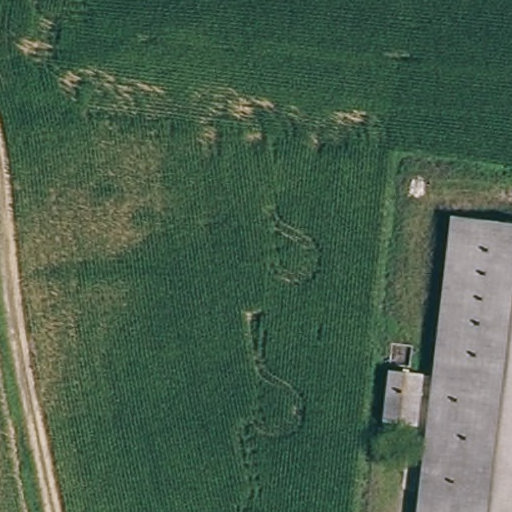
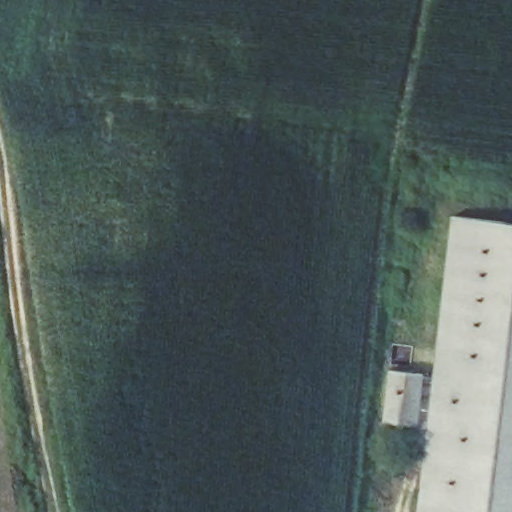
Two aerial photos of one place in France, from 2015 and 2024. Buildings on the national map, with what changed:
unchanged [(415,512),(463,212),(512,220),(512,512),(415,512)]
unchanged [(419,417),(384,413),(392,361),(427,368),(419,417)]

